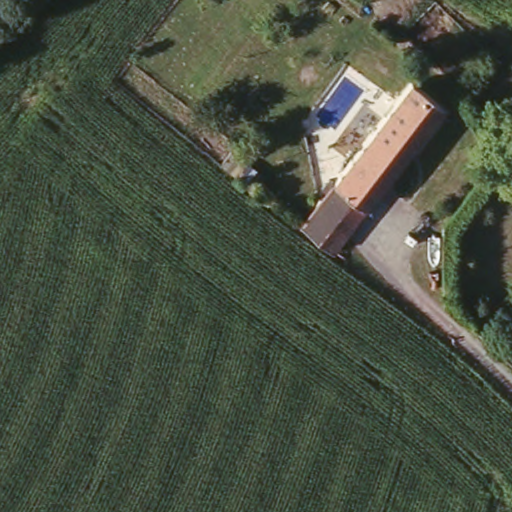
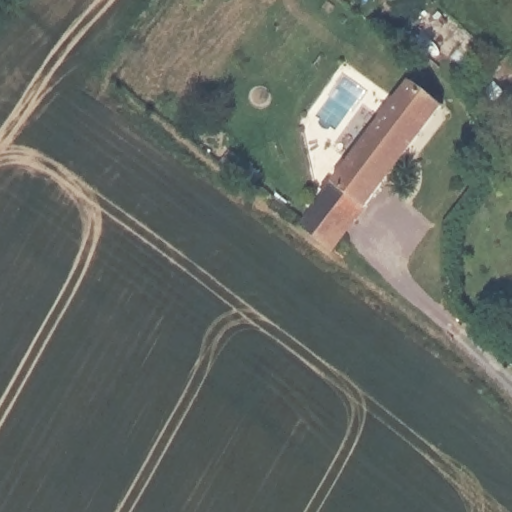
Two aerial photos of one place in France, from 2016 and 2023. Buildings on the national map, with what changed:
unchanged [(418,81),(436,101),(446,93),(457,101),(323,243),(293,214),(290,212),(418,81)]

